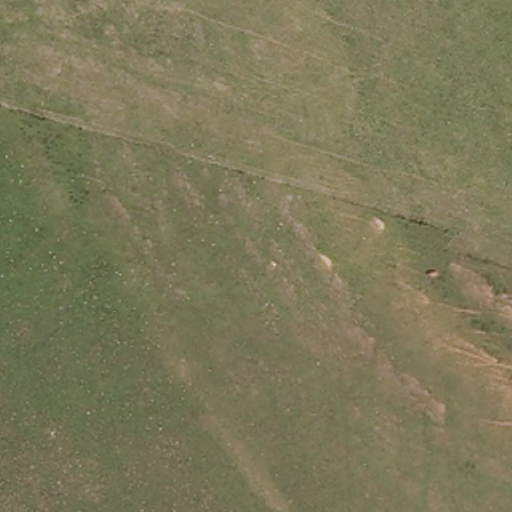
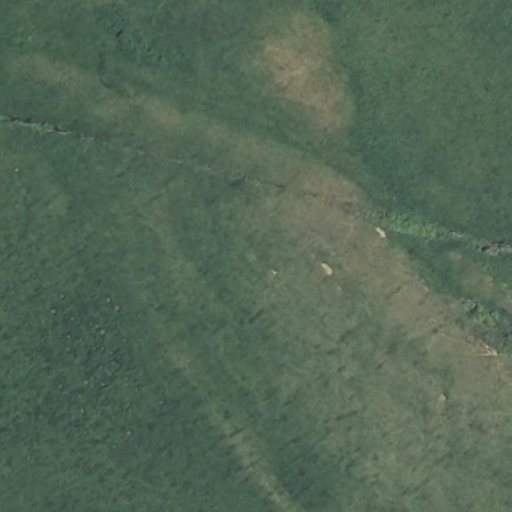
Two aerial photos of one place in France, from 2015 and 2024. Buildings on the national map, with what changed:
[]

